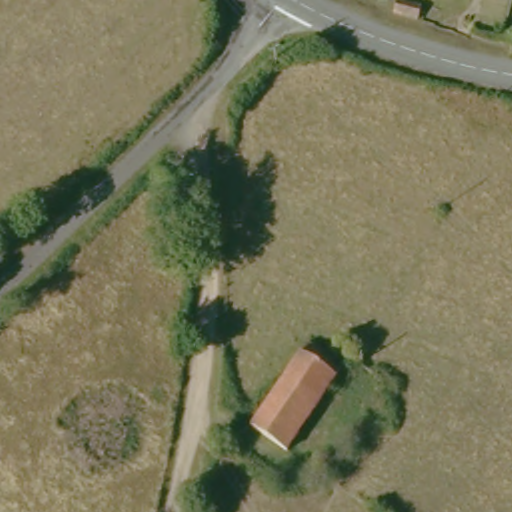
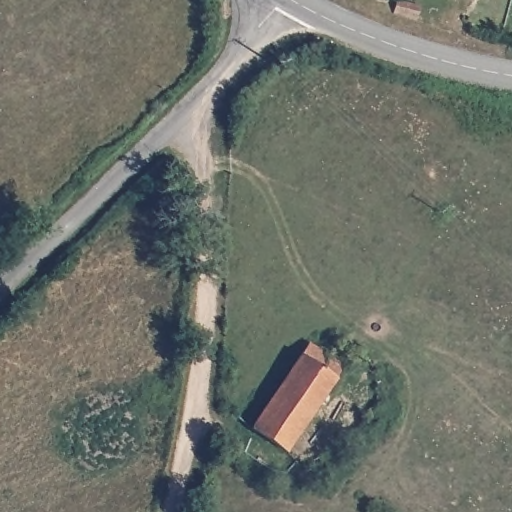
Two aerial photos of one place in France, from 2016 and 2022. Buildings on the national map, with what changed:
unchanged [(421,6),(418,24),(392,18),(396,0),(421,6)]
unchanged [(305,341),(339,362),(335,369),(342,375),(334,389),(325,384),(282,450),(249,428),(305,341)]

